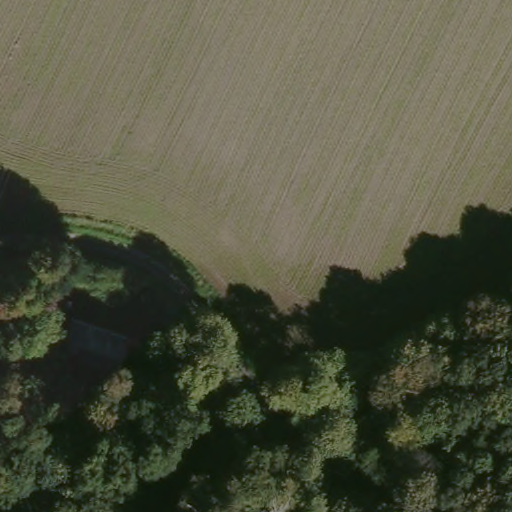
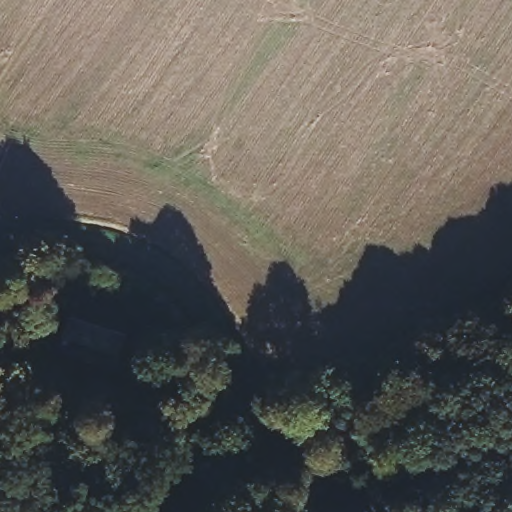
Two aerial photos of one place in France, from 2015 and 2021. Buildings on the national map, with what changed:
unchanged [(57,347),(70,320),(120,343),(107,371),(57,347)]

